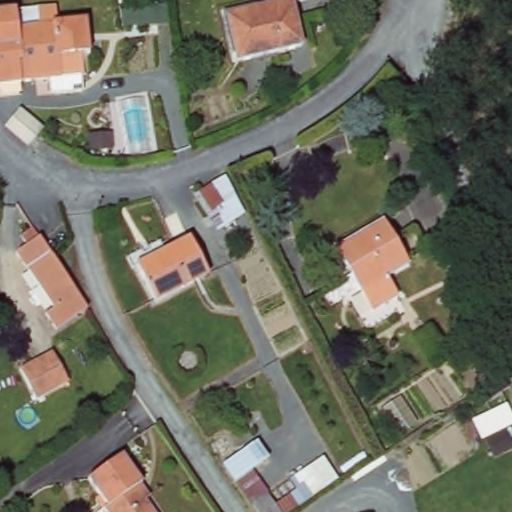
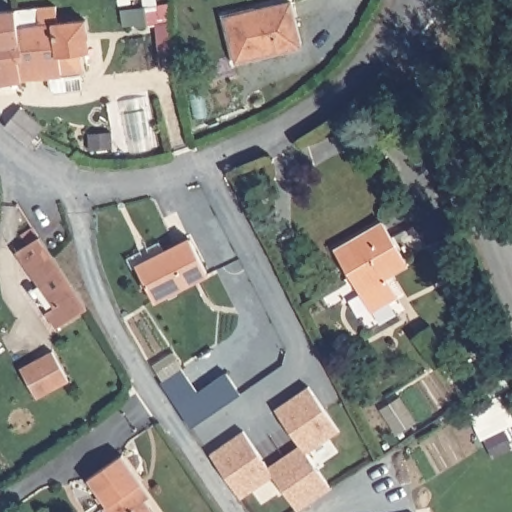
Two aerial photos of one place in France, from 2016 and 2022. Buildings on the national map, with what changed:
unchanged [(289,6),(298,44),(234,59),(225,21),(289,6)]
unchanged [(16,10),(18,29),(24,85),(0,89),(0,11),(16,10)]
unchanged [(80,24),(84,52),(79,53),(82,79),(24,85),(18,29),(80,24)]
unchanged [(18,106),(24,111),(40,124),(34,133),(27,142),(4,123),(9,117),(18,106)]
demolished [(224,179),(235,202),(230,205),(212,214),(200,189),(217,181),(224,179)]
unchanged [(379,225),(401,266),(379,277),(390,298),(366,311),(332,249),(379,225)]
unchanged [(36,315),(45,308),(5,255),(17,247),(10,237),(26,226),(47,249),(80,303),(82,306),(48,330),(39,320),(36,315)]
unchanged [(204,274),(154,302),(133,267),(184,239),(204,274)]
unchanged [(48,350),(67,376),(34,399),(14,372),(48,350)]
new [(241,393),(192,427),(161,382),(182,368),(197,392),(226,372),(241,393)]
new [(337,430),(305,453),(330,489),(297,511),(274,476),(241,499),(210,454),(243,431),(267,466),(299,445),(274,409),(308,386),(337,430)]
unchanged [(121,455),(140,481),(132,487),(150,512),(101,512),(100,510),(106,506),(87,478),(121,455)]
demolished [(256,512),(252,506),(249,507),(233,481),(254,471),(259,480),(249,488),(257,499),(265,494),(273,503),(292,489),(287,478),(321,455),(337,480),(286,512),(256,512)]

